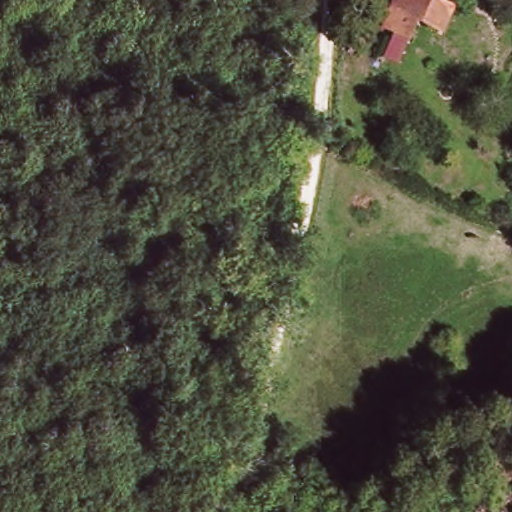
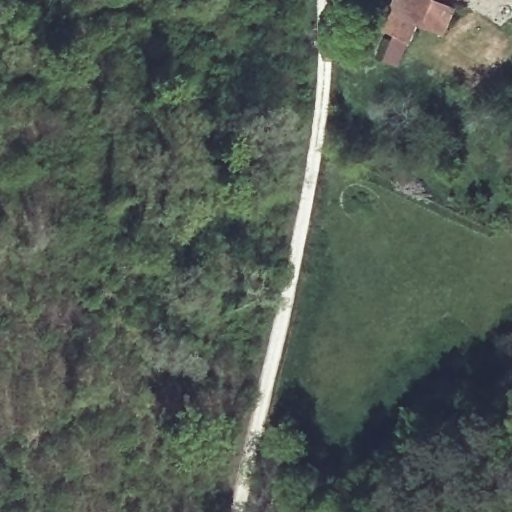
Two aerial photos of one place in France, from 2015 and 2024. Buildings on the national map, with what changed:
unchanged [(405,15),(412,0),(437,0),(461,14),(446,40),(405,15)]

